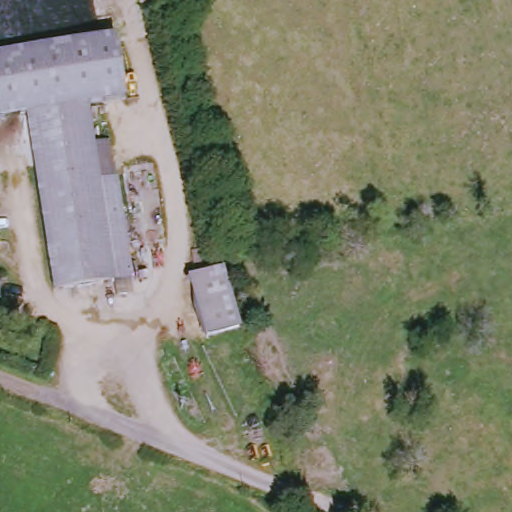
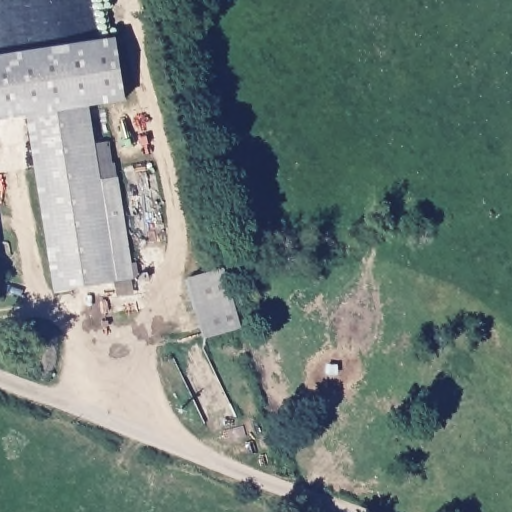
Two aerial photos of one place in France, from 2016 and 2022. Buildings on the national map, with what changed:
unchanged [(138,287),(131,288),(58,295),(34,116),(0,121),(0,59),(124,43),(133,103),(90,109),(94,147),(111,145),(116,182),(128,269),(136,268),(138,287)]
unchanged [(240,333),(203,342),(187,283),(223,273),(240,333)]

